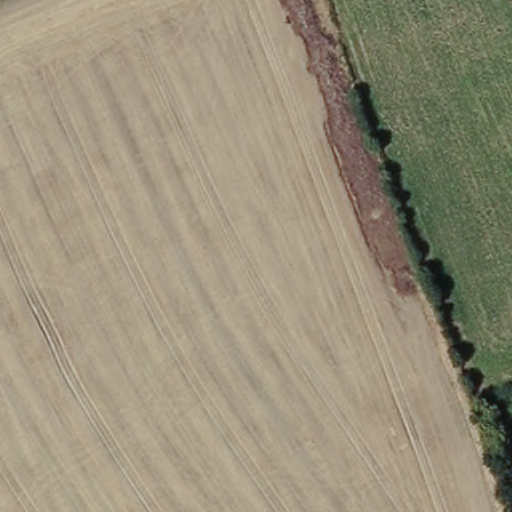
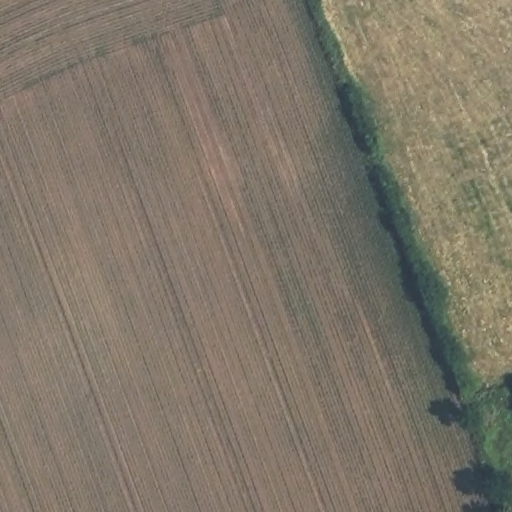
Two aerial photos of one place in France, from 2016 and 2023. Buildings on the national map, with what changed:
[]

